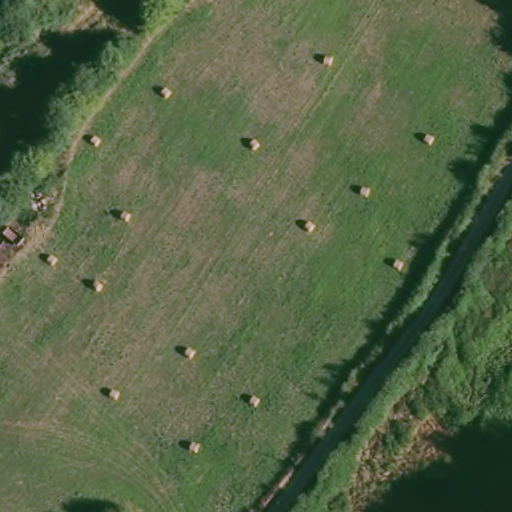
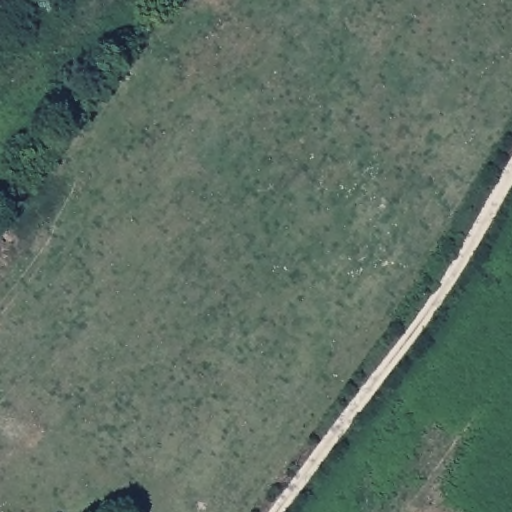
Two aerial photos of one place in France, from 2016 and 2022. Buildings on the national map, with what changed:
[]

